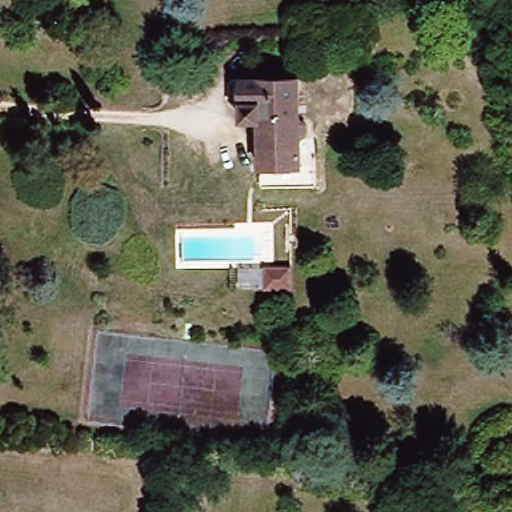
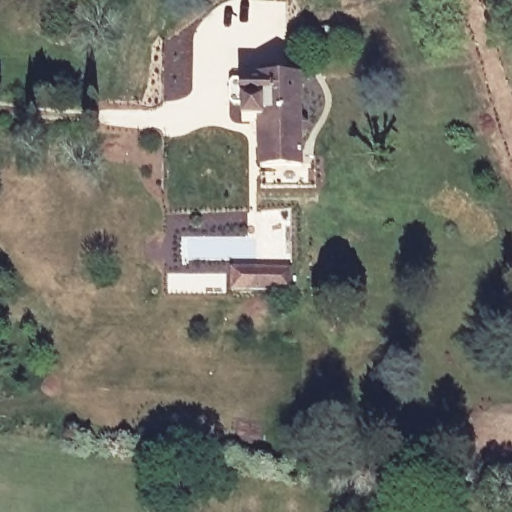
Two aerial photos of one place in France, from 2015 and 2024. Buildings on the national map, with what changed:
unchanged [(310,138),(303,143),(301,190),(258,189),(260,125),(238,124),(240,104),(225,104),(227,77),(306,81),(305,119),(311,119),(310,138)]

